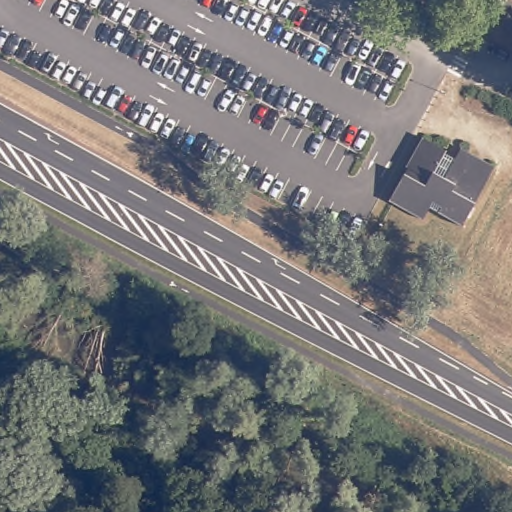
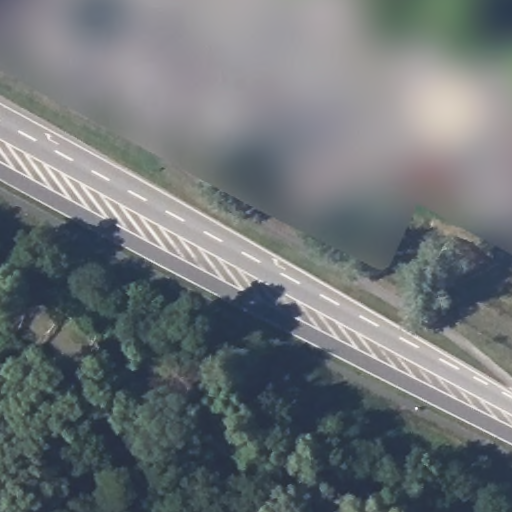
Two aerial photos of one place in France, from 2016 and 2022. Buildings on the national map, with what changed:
demolished [(426,208),(419,220),(386,202),(405,169),(402,167),(420,136),(445,151),(441,159),(450,164),(459,150),(493,169),(461,227),(426,208)]

